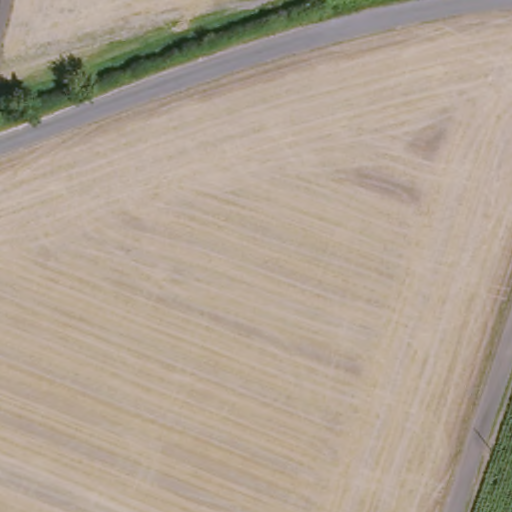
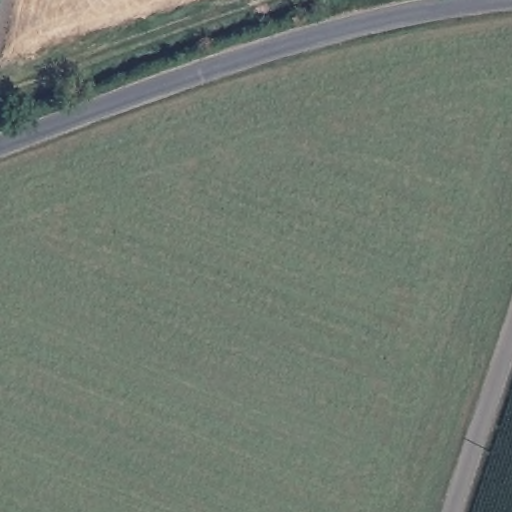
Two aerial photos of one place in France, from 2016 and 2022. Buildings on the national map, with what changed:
[]

